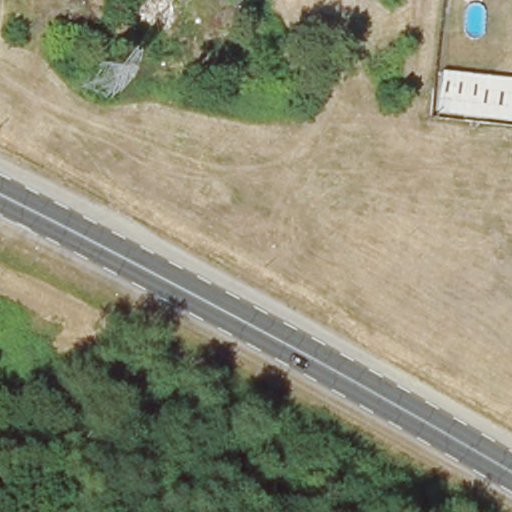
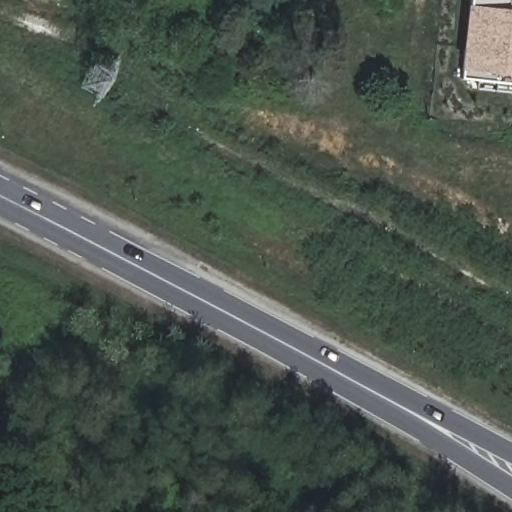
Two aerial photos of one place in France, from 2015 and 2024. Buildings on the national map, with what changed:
demolished [(130,24),(132,0),(169,0),(167,29),(130,24)]
new [(468,0),(512,0),(512,82),(458,75),(468,0)]
demolished [(436,69),(512,78),(512,121),(431,112),(436,69)]

